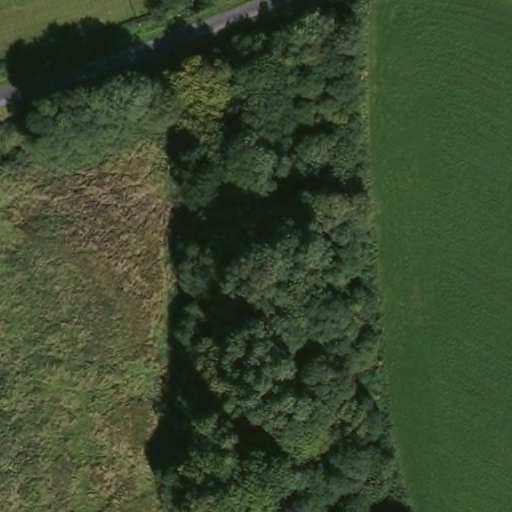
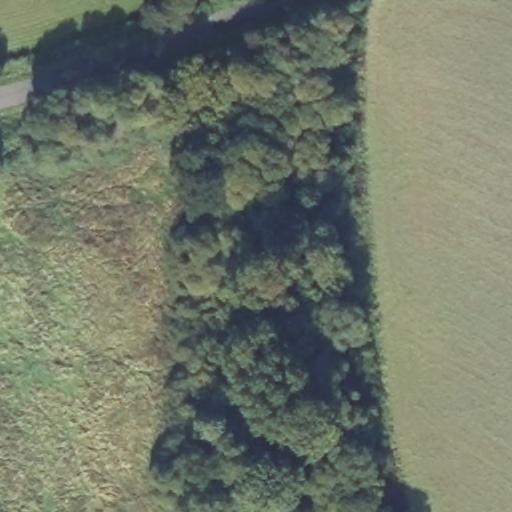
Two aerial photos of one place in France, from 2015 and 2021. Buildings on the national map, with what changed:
[]

